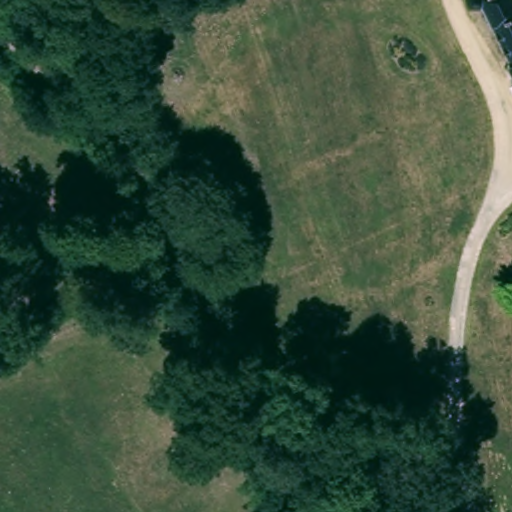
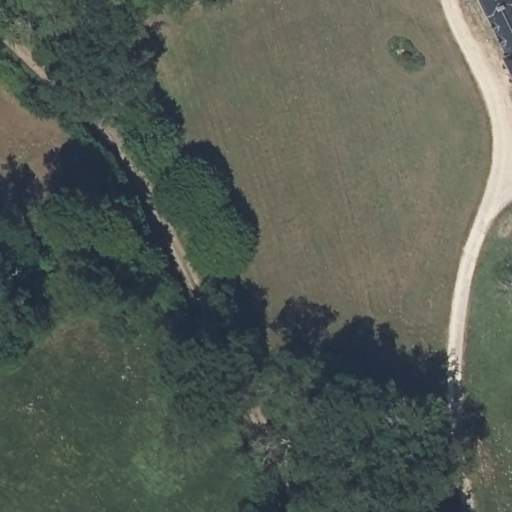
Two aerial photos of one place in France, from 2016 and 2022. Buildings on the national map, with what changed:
unchanged [(498,11),(492,0),(512,0),(512,43),(510,37),(498,11)]

